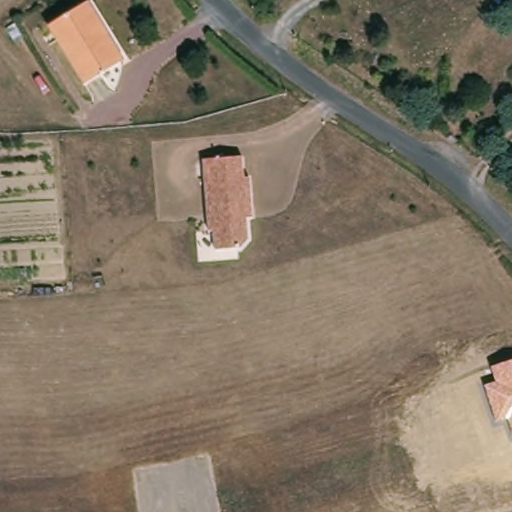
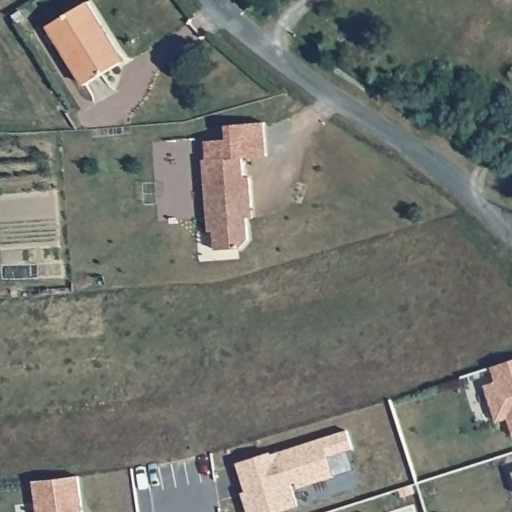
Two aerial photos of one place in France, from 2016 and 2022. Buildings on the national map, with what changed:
unchanged [(48,27),(87,2),(99,22),(124,61),(120,63),(84,85),(48,27)]
unchanged [(242,156),(246,246),(213,252),(197,164),(242,156)]
unchanged [(508,418),(496,422),(484,387),(496,382),(491,368),(512,361),(512,431),(508,418)]
new [(270,455),(349,430),(354,449),(328,457),(334,477),(299,488),(297,482),(290,484),(298,506),(276,512),(247,512),(241,493),(246,491),(236,463),(269,452),(270,455)]
new [(79,477),(84,512),(38,512),(34,482),(73,478),(79,477)]

